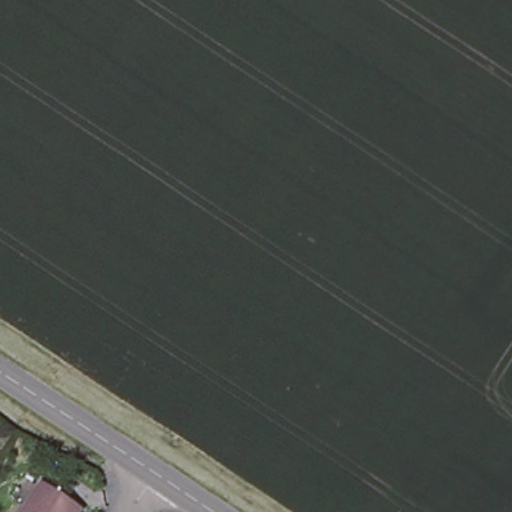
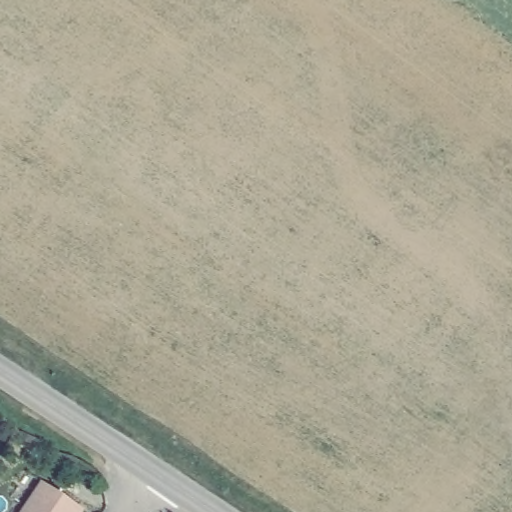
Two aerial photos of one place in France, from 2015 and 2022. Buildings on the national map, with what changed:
unchanged [(82,510),(81,512),(25,512),(44,484),(82,510)]

